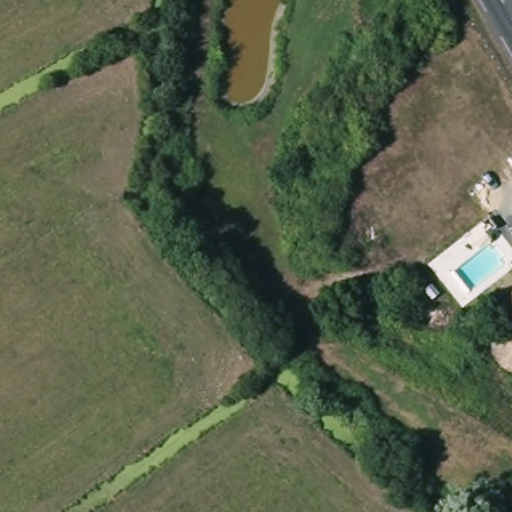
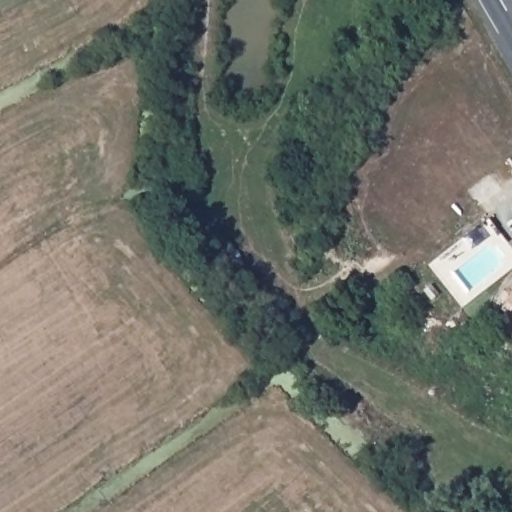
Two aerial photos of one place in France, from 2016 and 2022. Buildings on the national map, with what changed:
unchanged [(494,315),(512,293),(512,328),(494,315)]
unchanged [(511,340),(512,339),(512,342),(511,340)]

